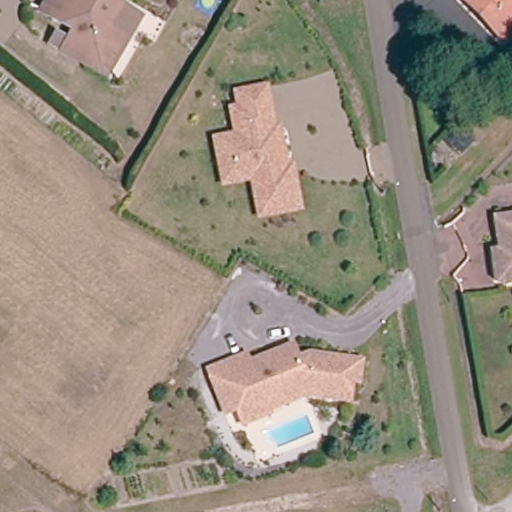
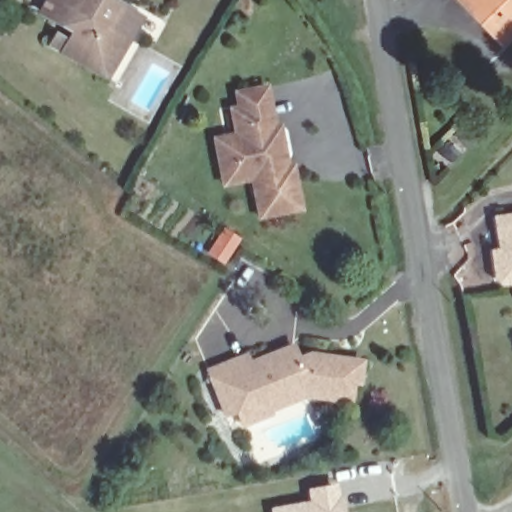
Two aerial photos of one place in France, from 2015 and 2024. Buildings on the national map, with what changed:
unchanged [(101,78),(95,75),(45,46),(51,34),(63,41),(68,32),(35,13),(42,0),(102,0),(129,16),(135,20),(101,78)]
unchanged [(455,0),(512,0),(512,25),(500,37),(496,41),(455,0)]
unchanged [(291,168),(300,211),(259,219),(251,179),(223,185),(214,141),(226,139),(235,137),(230,111),(239,110),(235,95),(265,89),(268,104),(273,130),(278,129),(285,161),(286,169),(291,168)]
unchanged [(512,214),(512,283),(502,285),(492,275),(490,251),(501,250),(500,240),(493,232),(491,217),(512,214)]
unchanged [(306,393),(268,408),(269,411),(242,422),(236,407),(225,411),(208,368),(245,353),(249,361),(292,344),(297,357),(310,352),(360,360),(357,380),(350,379),(347,398),(328,395),(308,392),(306,393)]
new [(305,489),(338,484),(344,512),(270,512),(269,508),(307,501),(305,489)]

